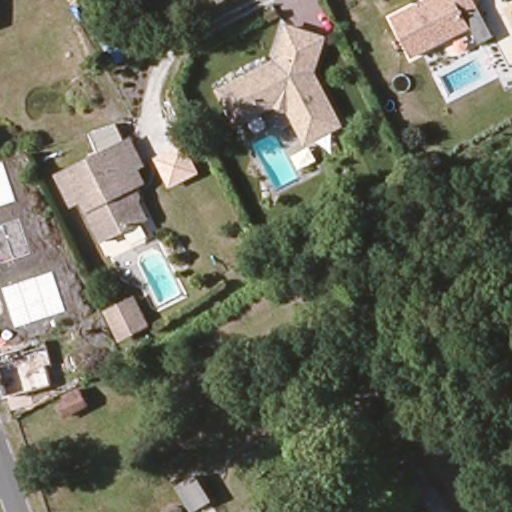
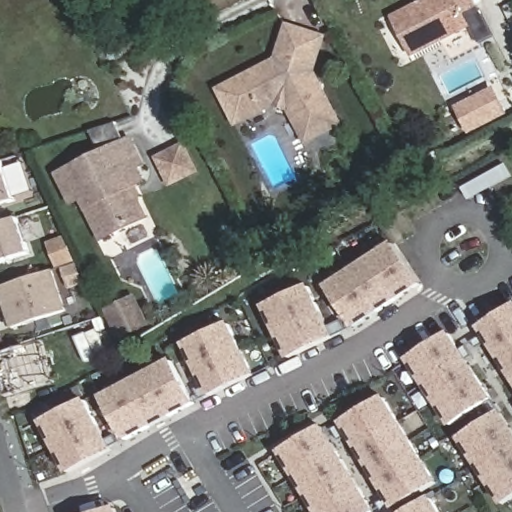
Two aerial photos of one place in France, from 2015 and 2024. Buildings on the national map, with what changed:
unchanged [(473,0),(474,2),(459,11),(465,24),(404,56),(385,19),(420,0),(473,0)]
unchanged [(275,60),(288,25),(322,39),(310,74),(316,78),(337,122),(306,139),(289,107),(281,111),(276,109),(273,103),(235,121),(218,89),(275,60)]
unchanged [(137,196),(147,217),(104,239),(84,197),(74,202),(61,175),(103,154),(103,152),(132,139),(145,165),(139,168),(145,181),(137,185),(141,194),(137,196)]
new [(181,144),(196,173),(167,187),(153,159),(181,144)]
new [(0,161),(4,160),(16,201),(0,206),(0,161)]
new [(0,225),(20,219),(31,254),(0,264),(0,225)]
new [(392,244),(418,285),(353,326),(327,286),(392,244)]
new [(67,311),(11,328),(0,290),(0,288),(54,271),(67,311)]
new [(346,330),(331,336),(288,357),(264,306),(307,286),(326,326),(339,320),(346,330)]
unchanged [(118,335),(114,327),(105,307),(129,296),(139,316),(142,322),(118,335)]
new [(488,340),(476,347),(471,341),(483,333),(479,327),(512,306),(512,376),(488,340)]
new [(185,343),(228,323),(252,374),(209,395),(200,399),(194,388),(204,384),(185,343)]
new [(501,503),(459,438),(492,417),(483,403),(450,425),(407,360),(448,333),(458,349),(465,345),(471,355),(465,360),(491,398),(500,412),(512,430),(512,496),(501,503)]
demolished [(23,351),(46,345),(52,364),(55,363),(59,380),(4,395),(0,381),(0,353),(22,347),(23,351)]
new [(171,360),(193,402),(124,439),(102,397),(171,360)]
new [(436,482),(394,507),(350,435),(340,441),(333,429),(343,423),(385,397),(436,482)]
new [(84,400),(110,450),(67,472),(41,422),(84,400)]
new [(279,455),(320,430),(369,511),(367,512),(314,512),(279,455)]
new [(113,435),(118,442),(109,447),(104,439),(113,435)]
new [(439,512),(406,512),(430,497),(439,512)]
new [(114,507),(115,512),(100,512),(114,507)]

